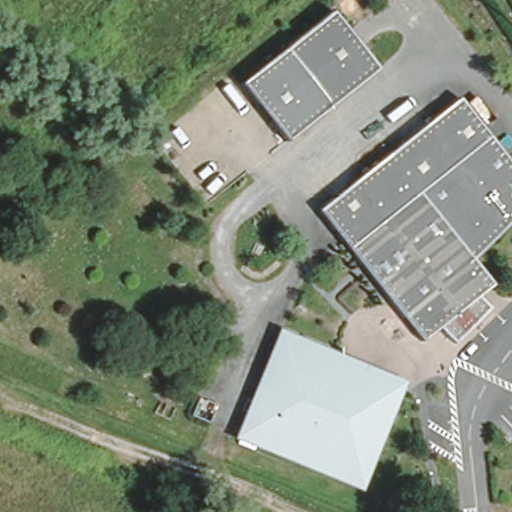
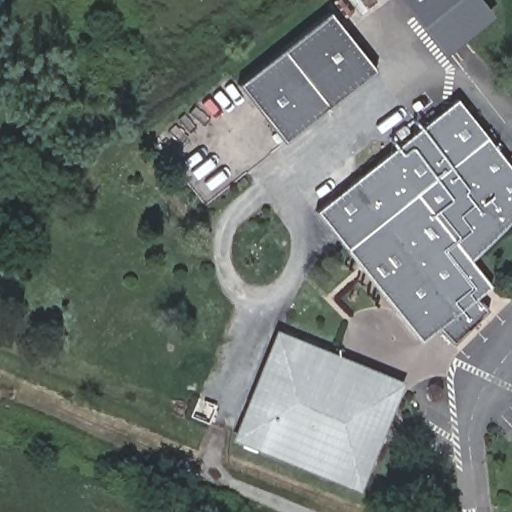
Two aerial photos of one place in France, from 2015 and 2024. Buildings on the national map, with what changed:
new [(400,0),(481,0),(493,16),(443,55),(400,0)]
unchanged [(325,16),(370,73),(279,146),(234,89),(325,16)]
unchanged [(405,326),(318,216),(458,105),(512,172),(512,223),(470,261),(490,289),(476,301),(488,314),(454,347),(440,331),(420,345),(405,326)]
unchanged [(386,435),(361,496),(232,443),(276,333),(348,363),(386,435)]
unchanged [(406,386),(386,435),(348,363),(406,386)]

